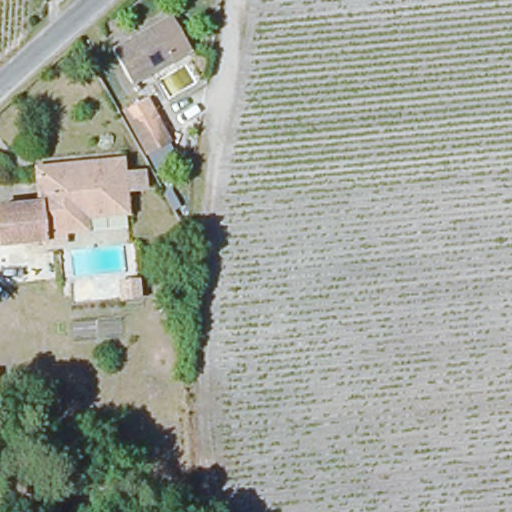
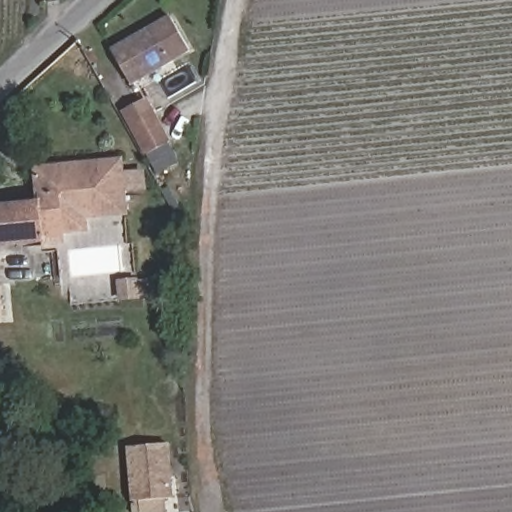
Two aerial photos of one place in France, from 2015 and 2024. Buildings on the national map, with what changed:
unchanged [(192,48),(130,86),(111,53),(173,14),(192,48)]
unchanged [(151,100),(172,135),(148,151),(127,115),(151,100)]
unchanged [(40,164),(123,157),(125,197),(126,210),(95,212),(95,225),(77,227),(46,229),(45,235),(45,239),(0,241),(0,242),(0,204),(43,201),(40,164)]
new [(166,499),(167,512),(141,512),(140,500),(132,501),(127,447),(170,442),(175,497),(166,499)]

